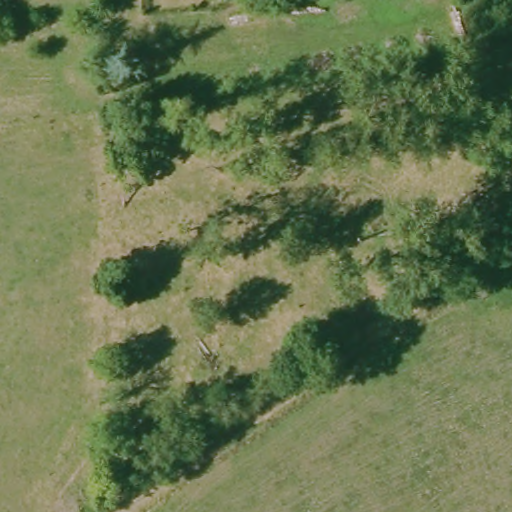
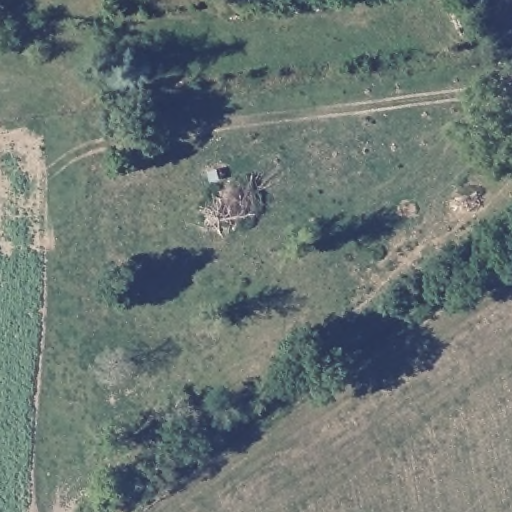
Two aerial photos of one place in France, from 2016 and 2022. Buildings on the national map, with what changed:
unchanged [(505,123),(509,114),(512,113),(512,133),(508,132),(505,123)]

